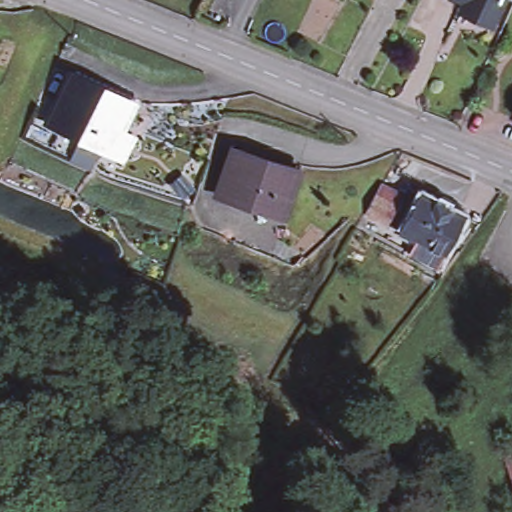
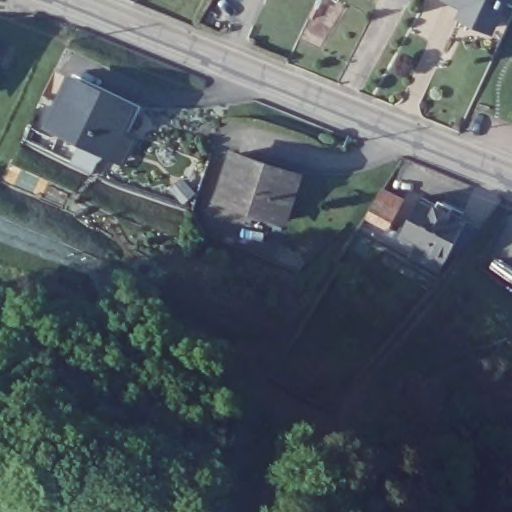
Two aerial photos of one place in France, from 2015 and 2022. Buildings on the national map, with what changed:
unchanged [(491,27),(471,20),(476,9),(456,0),(503,0),(491,27)]
unchanged [(118,162),(105,156),(43,126),(66,79),(127,108),(116,132),(129,138),(118,162)]
unchanged [(233,153),(299,175),(284,220),(218,199),(233,153)]
unchanged [(404,199),(388,228),(366,217),(384,188),(404,199)]
unchanged [(401,240),(421,202),(441,212),(444,206),(465,216),(462,223),(466,225),(446,263),(444,262),(438,276),(411,262),(418,249),(401,240)]
unchanged [(512,449),(512,483),(502,452),(512,449)]

